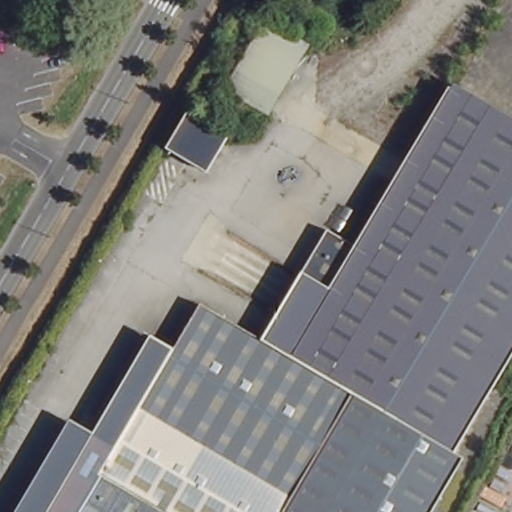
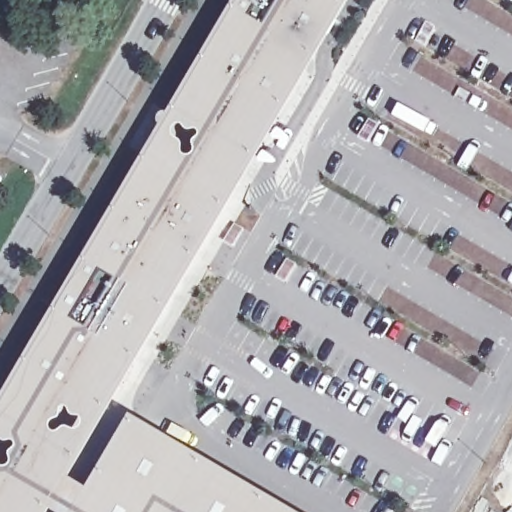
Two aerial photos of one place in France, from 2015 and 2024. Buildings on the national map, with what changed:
new [(70,478),(88,491),(132,417),(293,512),(0,512),(0,404),(237,0),(351,0),(70,478)]
demolished [(263,111),(228,90),(268,22),(303,44),(263,111)]
demolished [(173,350),(199,305),(289,358),(292,354),(329,291),(449,89),(512,126),(512,353),(495,382),(453,452),(463,457),(430,512),(49,512),(93,436),(116,448),(173,350)]
demolished [(165,149),(186,117),(224,139),(208,175),(165,149)]

